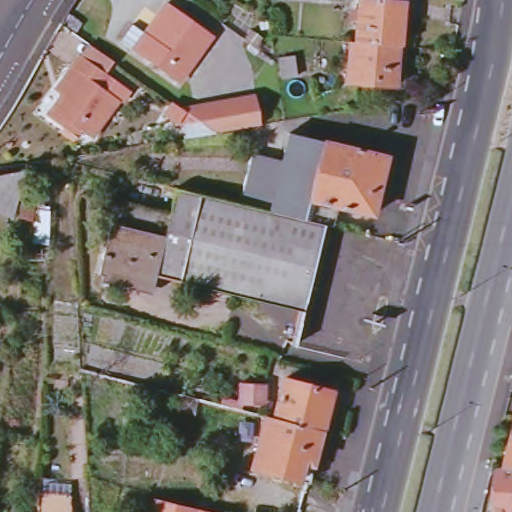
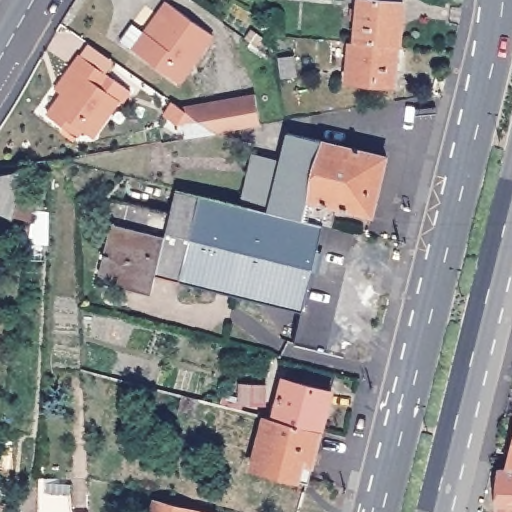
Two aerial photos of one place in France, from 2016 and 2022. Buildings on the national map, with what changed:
unchanged [(404,3),(399,45),(355,41),(359,0),(377,0),(404,3)]
unchanged [(147,32),(169,1),(214,32),(181,80),(123,41),(135,23),(147,32)]
unchanged [(87,40),(107,54),(98,67),(104,71),(125,85),(117,97),(90,135),(78,128),(73,136),(60,127),(44,115),(56,97),(50,93),(62,76),(78,53),(87,40)]
unchanged [(346,83),(350,41),(355,41),(399,45),(395,87),(346,83)]
unchanged [(295,58),(298,78),(285,80),(282,60),(295,58)]
unchanged [(258,96),(263,124),(263,125),(217,132),(189,137),(186,126),(180,127),(165,115),(175,103),(185,109),(258,96)]
unchanged [(310,200),(305,219),(273,212),(244,205),(258,145),(287,152),(292,133),(386,157),(372,215),(310,200)]
unchanged [(43,169),(32,224),(0,212),(0,176),(43,169)]
unchanged [(301,312),(153,276),(151,285),(95,271),(107,223),(163,237),(175,188),(244,205),(273,212),(305,219),(322,223),(301,312)]
unchanged [(332,390),(322,430),(276,418),(286,379),(332,390)]
unchanged [(265,383),(265,402),(241,401),(242,382),(265,383)]
unchanged [(197,401),(193,414),(178,410),(181,396),(197,401)]
unchanged [(309,482),(253,468),(267,415),(276,418),(322,430),(309,482)]
unchanged [(512,429),(512,467),(502,467),(512,429)]
unchanged [(502,467),(512,467),(512,512),(494,512),(496,466),(502,467)]
unchanged [(73,512),(37,512),(39,491),(70,492),(73,512)]
unchanged [(218,512),(154,512),(158,493),(218,508),(218,512)]

